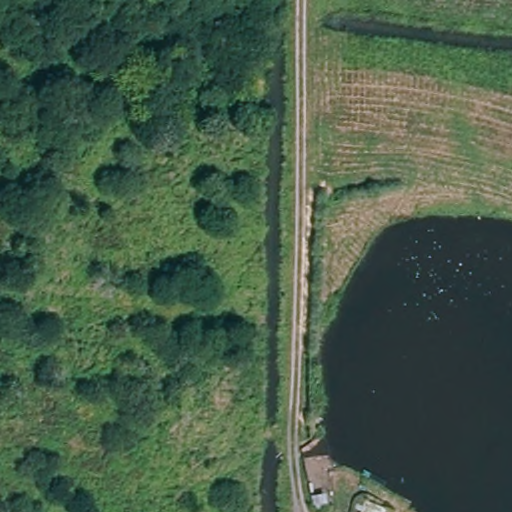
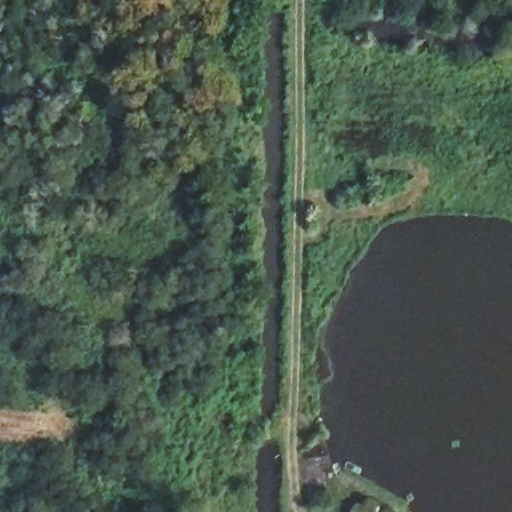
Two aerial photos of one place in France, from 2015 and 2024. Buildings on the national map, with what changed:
unchanged [(380,512),(361,512),(363,506),(380,512)]

